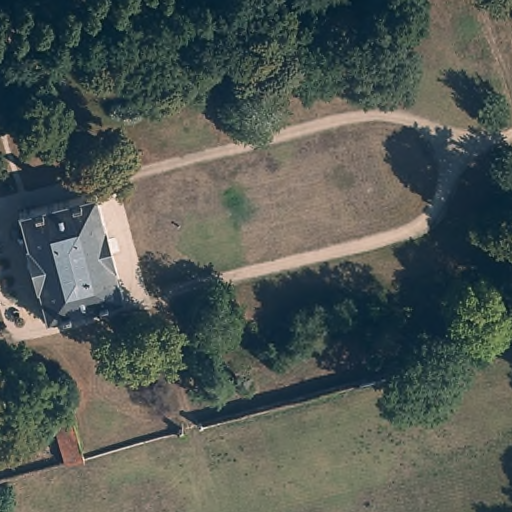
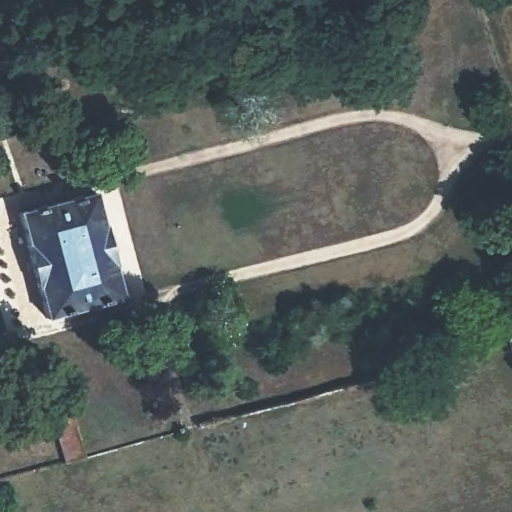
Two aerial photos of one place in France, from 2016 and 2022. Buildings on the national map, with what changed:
unchanged [(0,131),(0,102),(8,129),(0,131)]
unchanged [(125,299),(50,317),(25,215),(99,198),(125,299)]
unchanged [(505,315),(512,314),(512,341),(505,315)]
unchanged [(71,413),(81,457),(63,462),(52,417),(71,413)]

